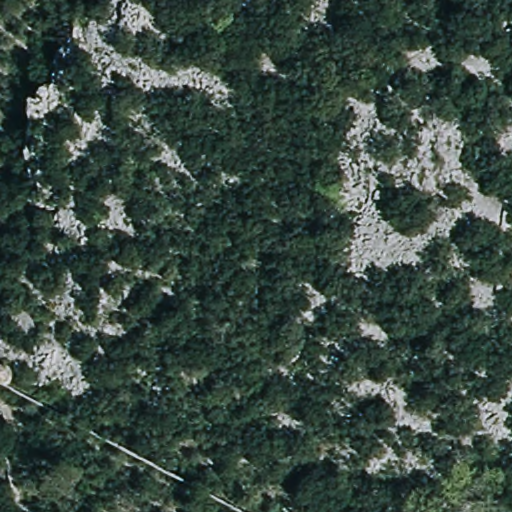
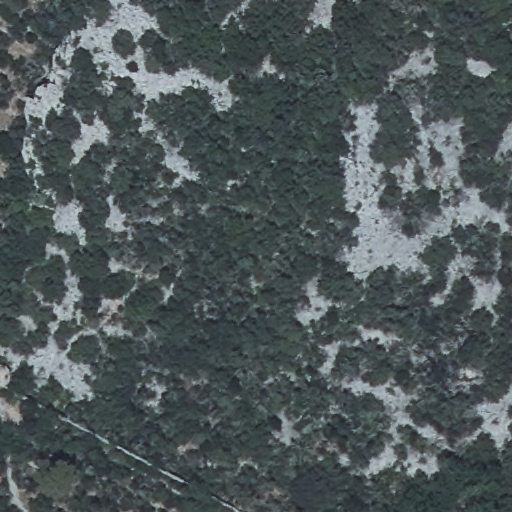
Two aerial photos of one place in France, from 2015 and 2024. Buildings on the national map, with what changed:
[]

